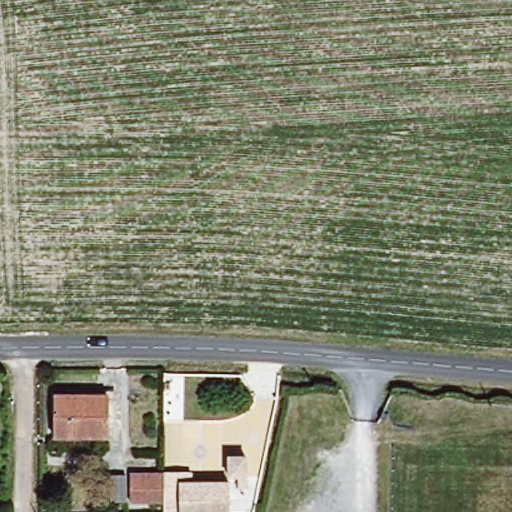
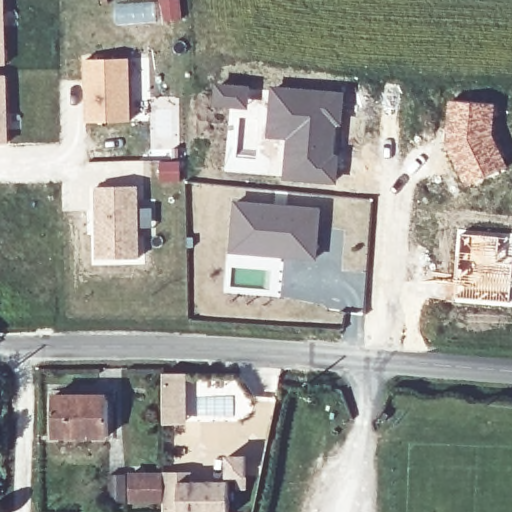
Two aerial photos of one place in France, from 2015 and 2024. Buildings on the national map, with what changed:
new [(165,22),(161,0),(181,0),(184,19),(165,22)]
new [(16,26),(0,28),(2,64),(0,64),(0,11),(15,10),(16,26)]
new [(130,56),(131,121),(85,122),(82,58),(130,56)]
new [(17,114),(17,129),(2,130),(4,143),(0,143),(0,76),(1,75),(3,114),(17,114)]
new [(215,82),(252,84),(250,109),(214,106),(215,82)]
new [(270,85),(346,90),(337,153),(341,154),(337,185),(283,179),(286,139),(266,137),(270,85)]
new [(449,98),(496,103),(495,133),(509,165),(465,187),(452,160),(447,144),(447,125),(449,98)]
new [(134,187),(135,202),(152,202),(154,237),(135,239),(135,259),(95,259),(95,188),(134,187)]
new [(232,199),(322,207),(317,260),(228,252),(232,199)]
new [(457,229),(512,232),(512,303),(451,299),(457,229)]
new [(162,374),(187,374),(187,425),(163,425),(162,374)]
unchanged [(106,434),(53,434),(53,394),(107,394),(106,434)]
unchanged [(163,501),(130,500),(130,472),(164,472),(181,472),(192,472),(192,481),(230,481),(230,511),(230,512),(163,512),(163,501)]
unchanged [(110,499),(110,474),(125,474),(125,499),(110,499)]

